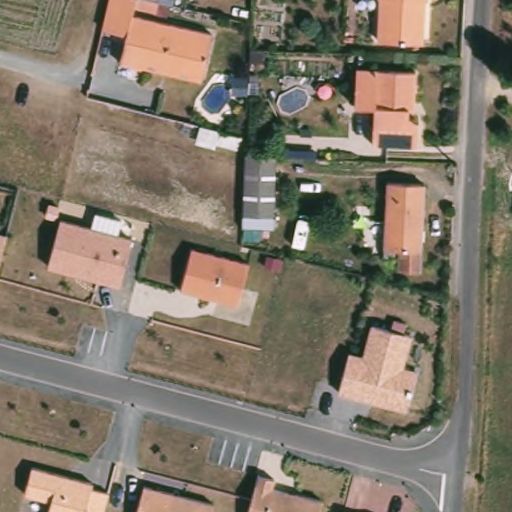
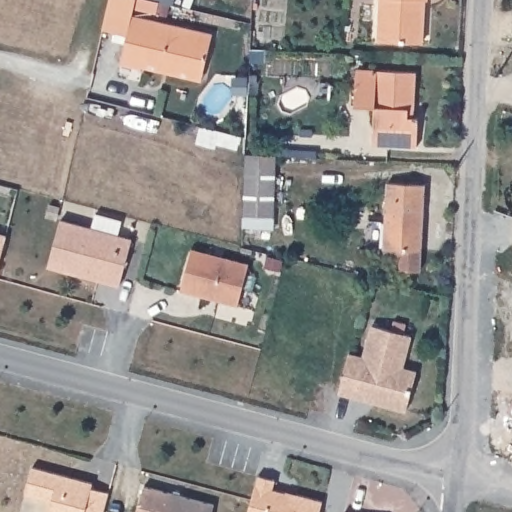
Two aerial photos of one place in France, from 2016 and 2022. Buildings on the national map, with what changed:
unchanged [(133,1),(129,20),(124,40),(98,34),(106,0),(131,0),(133,1)]
unchanged [(417,42),(377,40),(378,0),(419,0),(417,42)]
unchanged [(149,74),(117,67),(124,40),(129,20),(210,38),(200,79),(198,86),(149,74)]
unchanged [(350,104),(352,69),(412,72),(410,107),(405,107),(404,115),(414,116),(412,146),(369,144),(371,105),(350,104)]
unchanged [(277,160),(274,219),(244,218),(246,158),(277,160)]
unchanged [(425,183),(421,249),(420,269),(397,267),(397,248),(385,247),(389,182),(425,183)]
unchanged [(132,236),(120,286),(48,268),(61,218),(132,236)]
unchanged [(0,256),(0,232),(5,234),(0,256)]
unchanged [(249,263),(240,305),(182,291),(192,249),(249,263)]
unchanged [(403,366),(417,369),(407,411),(338,393),(348,351),(363,355),(371,325),(412,335),(403,366)]
unchanged [(93,488),(108,491),(103,512),(48,512),(51,499),(25,493),(31,464),(95,481),(93,488)]
unchanged [(275,489),(322,500),(318,512),(248,512),(256,474),(277,479),(275,489)]
unchanged [(211,512),(136,512),(142,484),(214,502),(211,512)]

